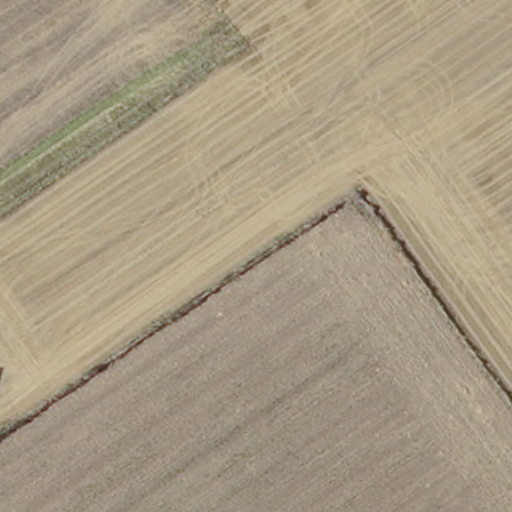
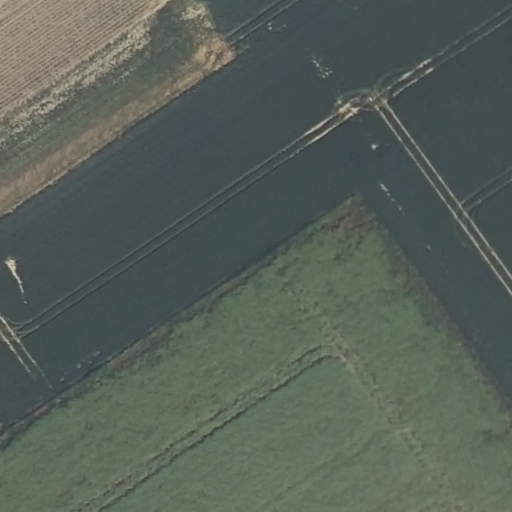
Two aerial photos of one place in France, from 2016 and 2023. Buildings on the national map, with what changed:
[]

